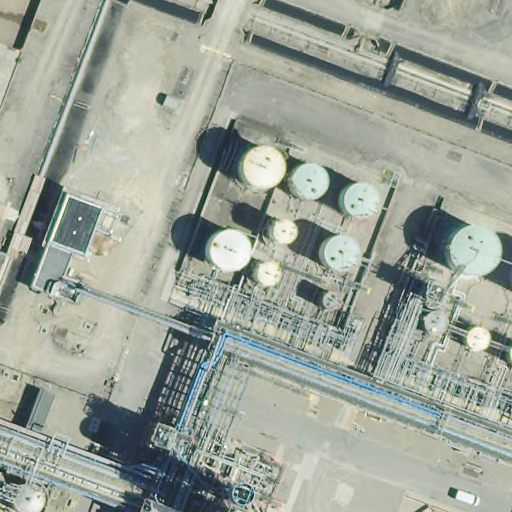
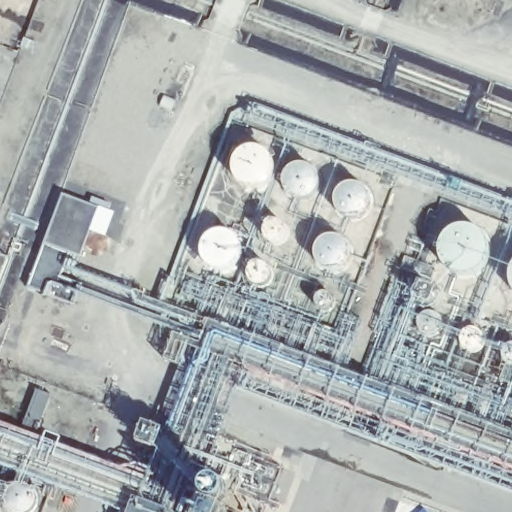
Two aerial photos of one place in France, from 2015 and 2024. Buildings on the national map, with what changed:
unchanged [(116,239),(113,242),(108,244),(105,244),(101,242),(98,239),(97,235),(97,231),(98,227),(102,224),(104,223),(107,222),(110,223),(113,224),(116,227),(117,232),(117,235),(116,239)]
unchanged [(25,432),(43,385),(61,392),(42,439),(25,432)]
unchanged [(235,488),(231,512),(120,512),(135,464),(153,470),(179,398),(238,414),(227,440),(282,460),(268,500),(235,488)]

